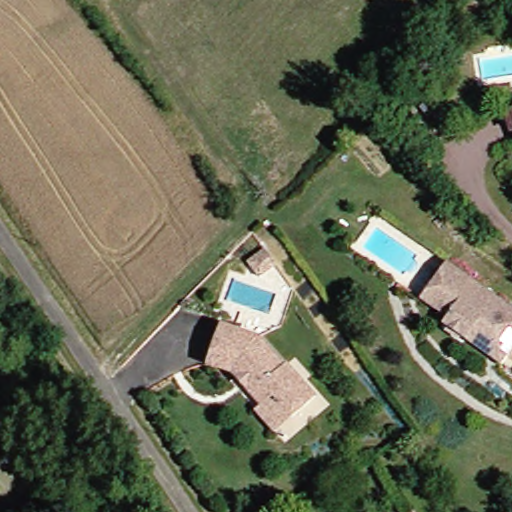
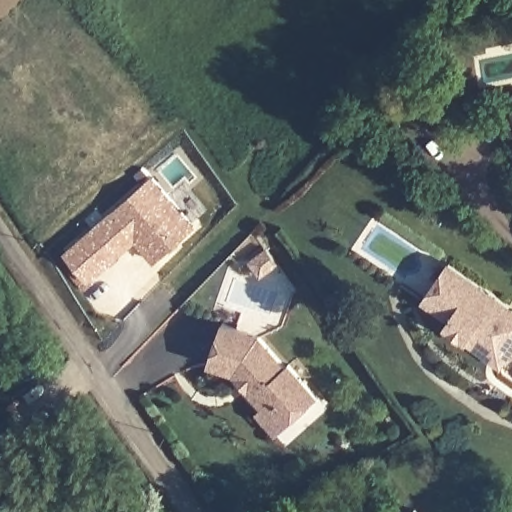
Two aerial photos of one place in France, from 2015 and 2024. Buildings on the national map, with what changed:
unchanged [(512,114),(512,120),(510,115),(512,114)]
new [(157,261),(138,240),(89,281),(65,251),(153,175),(197,226),(157,261)]
unchanged [(479,345),(451,325),(455,319),(428,300),(452,263),(508,301),(479,345)]
unchanged [(512,357),(507,364),(479,345),(508,301),(512,304),(512,357)]
unchanged [(267,408),(252,390),(257,386),(248,376),(243,380),(238,375),(213,366),(226,326),(262,338),(289,368),(291,365),(320,397),(296,419),(280,434),(262,413),(267,408)]
unchanged [(421,512),(415,512),(419,509),(421,512)]

